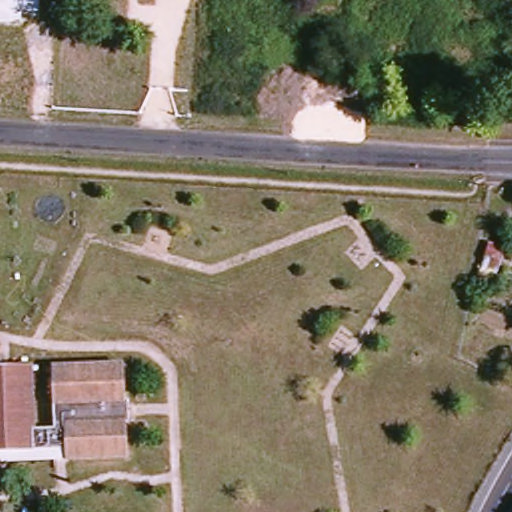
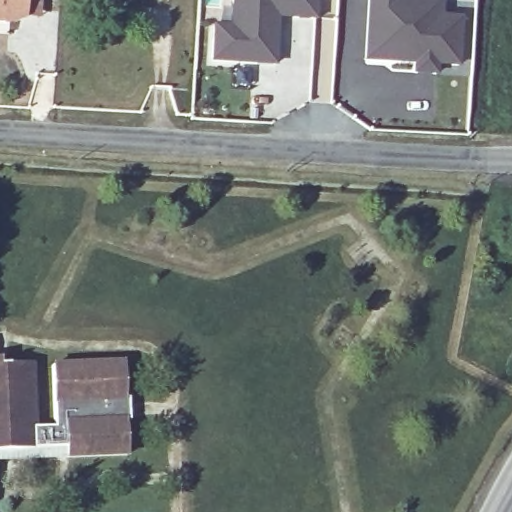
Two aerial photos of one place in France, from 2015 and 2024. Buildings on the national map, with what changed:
new [(23,19),(11,24),(0,23),(0,0),(40,0),(39,19),(23,19)]
new [(278,18),(275,64),(210,61),(211,27),(230,27),(232,0),(315,0),(314,19),(278,18)]
new [(458,64),(362,58),(365,0),(440,0),(462,1),(458,64)]
unchanged [(31,363),(34,426),(55,426),(51,364),(117,362),(124,362),(125,398),(128,397),(129,420),(126,420),(127,454),(121,454),(66,456),(0,459),(0,364),(31,363)]

